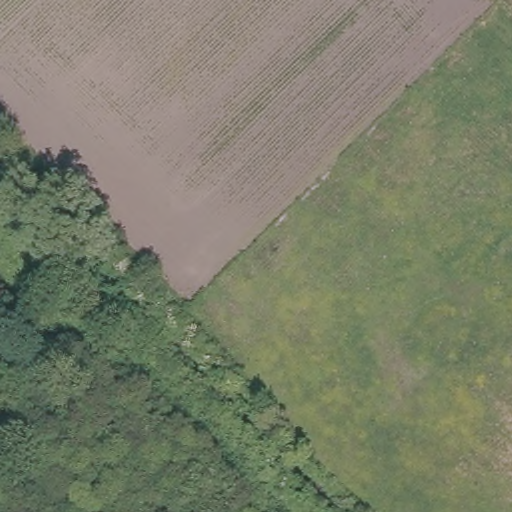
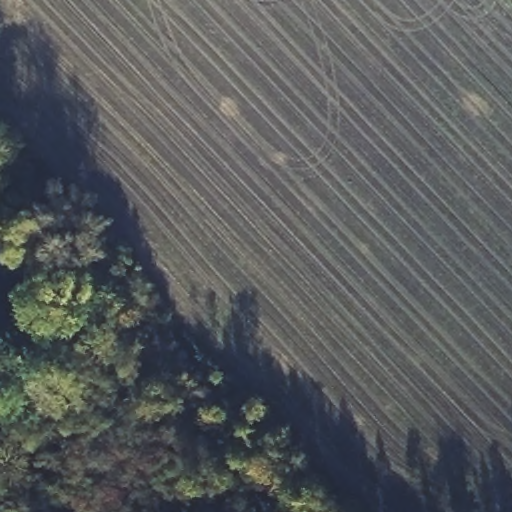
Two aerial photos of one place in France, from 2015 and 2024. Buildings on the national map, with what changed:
[]

